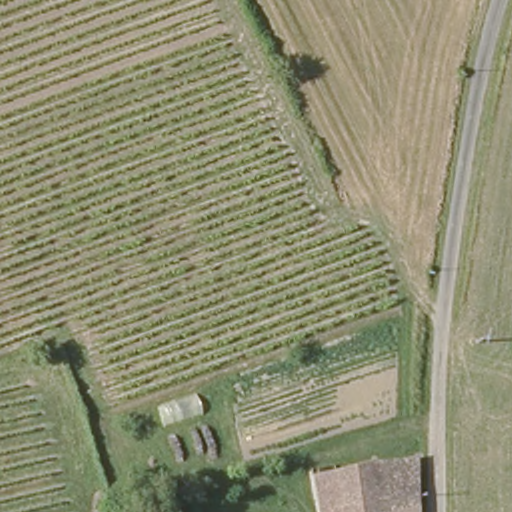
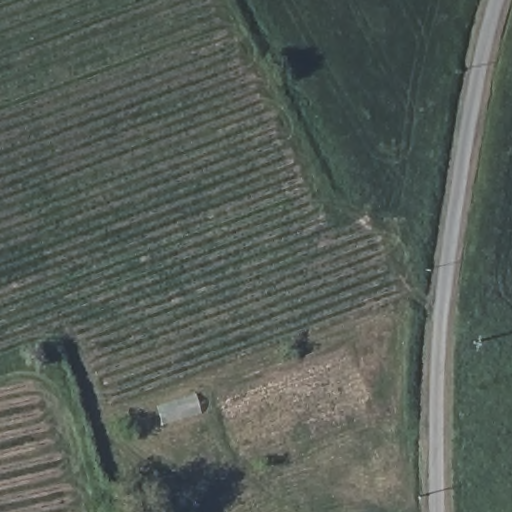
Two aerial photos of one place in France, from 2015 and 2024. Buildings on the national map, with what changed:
demolished [(418,453),(418,512),(317,512),(311,472),(418,453)]

